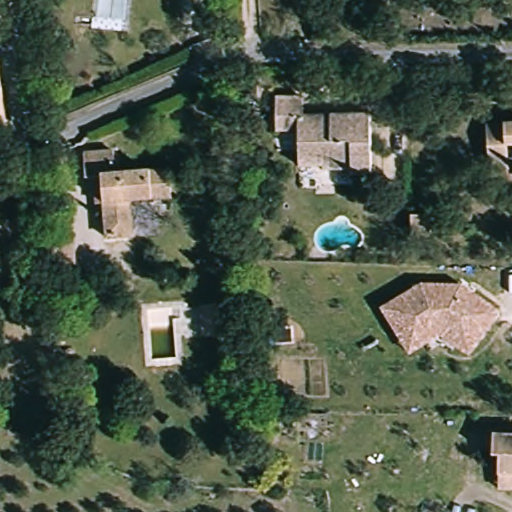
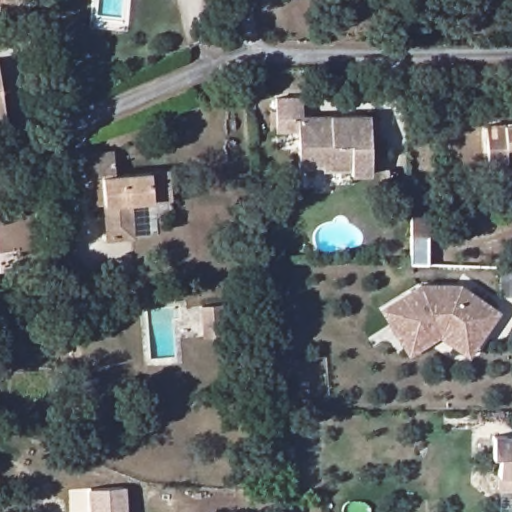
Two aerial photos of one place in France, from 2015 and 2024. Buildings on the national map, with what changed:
unchanged [(33,12),(4,15),(2,0),(32,0),(33,12)]
unchanged [(5,117),(0,118),(0,83),(5,117)]
unchanged [(274,135),(276,101),(304,101),(303,115),(367,114),(368,176),(349,177),(348,172),(323,169),(297,168),(297,136),(274,135)]
unchanged [(503,160),(484,161),(484,128),(512,125),(512,147),(502,148),(503,160)]
unchanged [(77,160),(110,157),(112,180),(166,175),(169,205),(129,207),(132,241),(102,243),(96,182),(79,183),(77,160)]
unchanged [(425,237),(407,237),(407,219),(425,219),(425,237)]
unchanged [(40,227),(67,224),(72,273),(49,277),(40,227)]
unchanged [(385,305),(423,281),(462,282),(498,308),(480,335),(450,314),(429,313),(402,332),(385,305)]
unchanged [(195,307),(222,303),(224,341),(200,342),(195,307)]
unchanged [(402,332),(429,313),(450,314),(480,335),(468,351),(439,331),(412,347),(402,332)]
unchanged [(495,468),(485,467),(487,441),(512,442),(512,495),(494,495),(495,481),(495,468)]
new [(128,512),(89,512),(87,490),(126,487),(128,512)]

